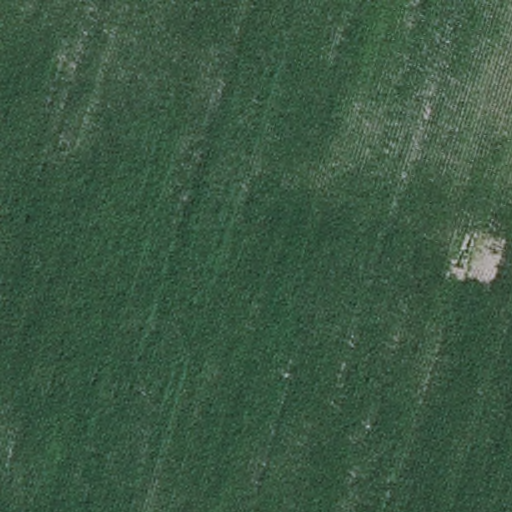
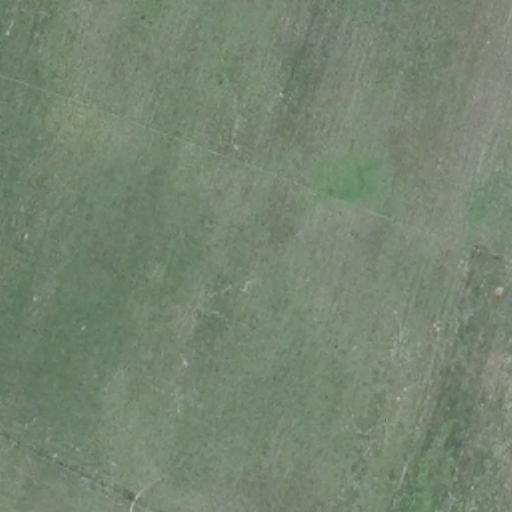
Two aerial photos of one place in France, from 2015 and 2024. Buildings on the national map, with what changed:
[]

